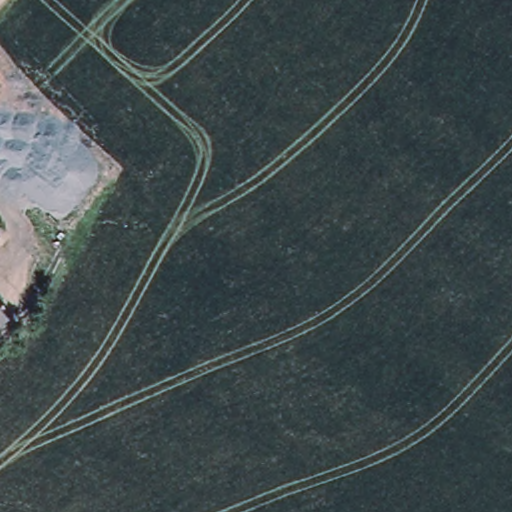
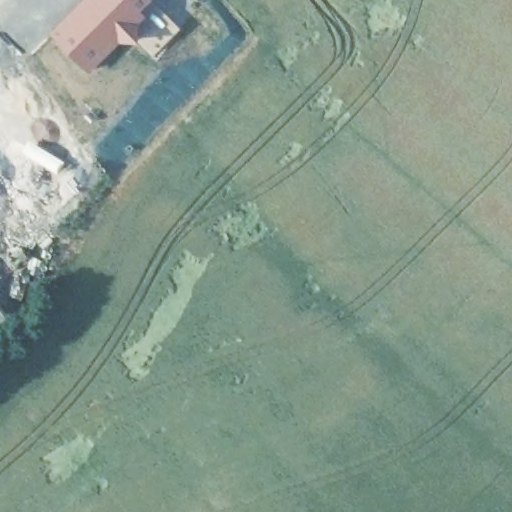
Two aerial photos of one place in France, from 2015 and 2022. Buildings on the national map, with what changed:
new [(149,16),(141,23),(141,42),(121,41),(91,71),(52,30),(82,0),(153,0),(143,10),(149,16)]
unchanged [(12,309),(0,320),(0,297),(12,309)]

